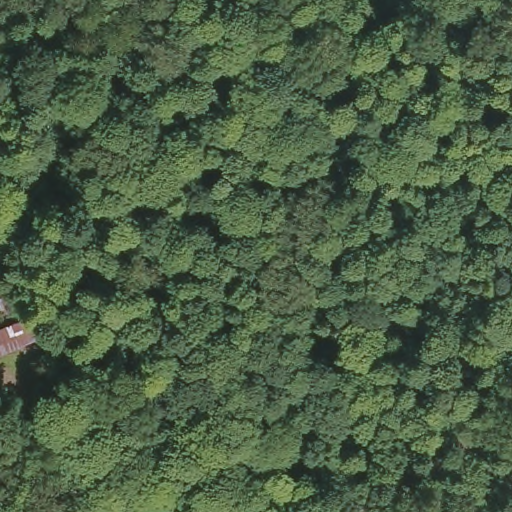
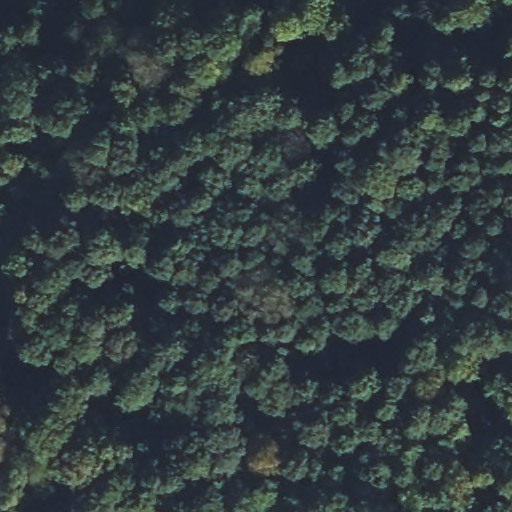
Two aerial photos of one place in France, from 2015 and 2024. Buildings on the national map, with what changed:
unchanged [(34,338),(0,349),(0,324),(25,317),(34,338)]

